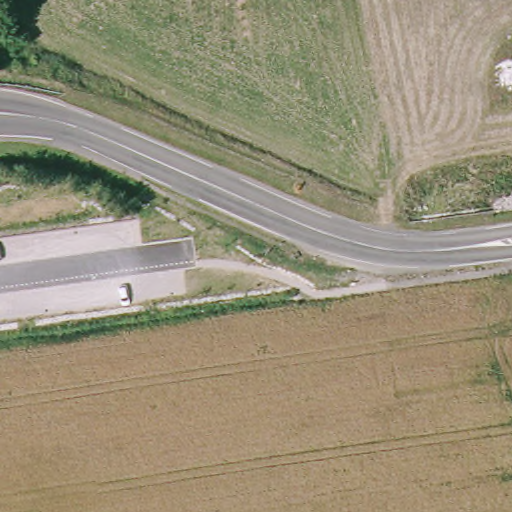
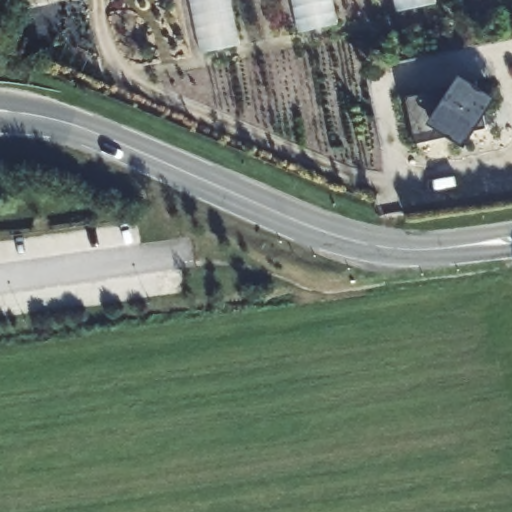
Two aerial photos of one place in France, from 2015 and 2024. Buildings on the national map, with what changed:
new [(242,32),(233,35),(236,44),(209,51),(194,0),(233,0),(242,32)]
new [(446,135),(415,142),(406,96),(455,84),(461,77),(466,80),(477,79),(480,88),(497,99),(485,116),(487,126),(477,128),(465,148),(446,135)]

